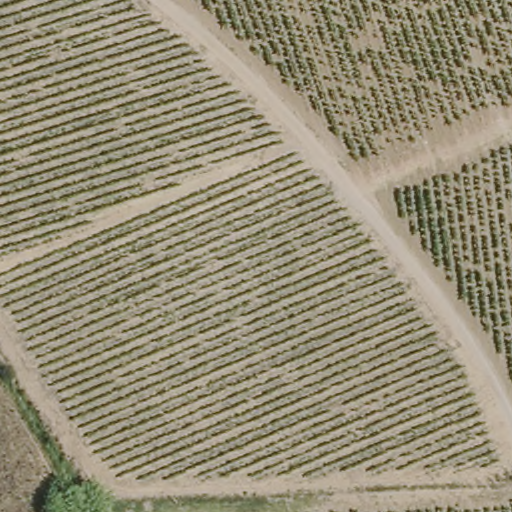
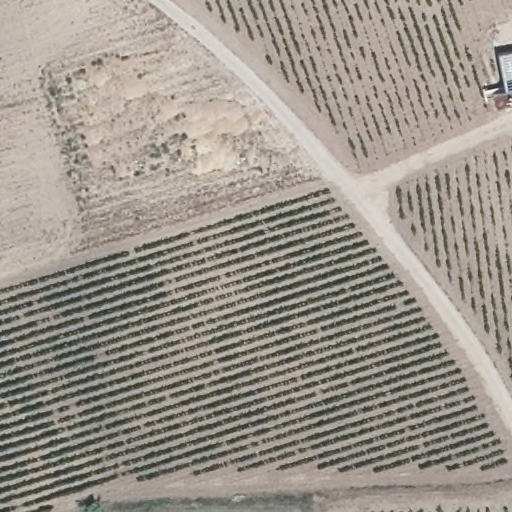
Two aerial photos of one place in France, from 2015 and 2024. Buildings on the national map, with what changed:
new [(512,49),(512,88),(506,90),(497,52),(512,49)]

